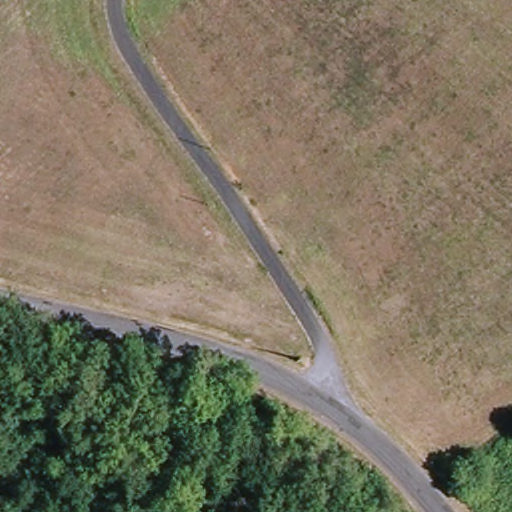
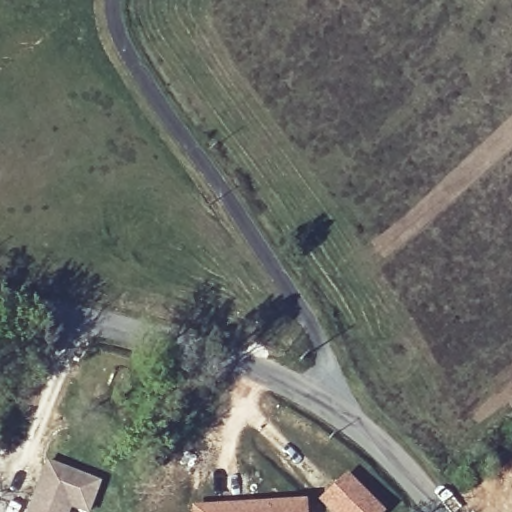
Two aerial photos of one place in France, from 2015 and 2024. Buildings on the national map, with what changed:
new [(99,482),(88,512),(68,512),(25,512),(44,463),(99,482)]
new [(317,501),(345,475),(380,512),(327,512),(317,501)]
new [(188,508),(303,502),(303,512),(188,512),(188,508)]

